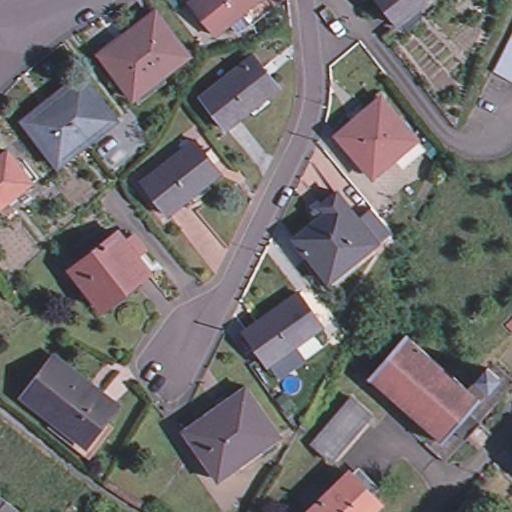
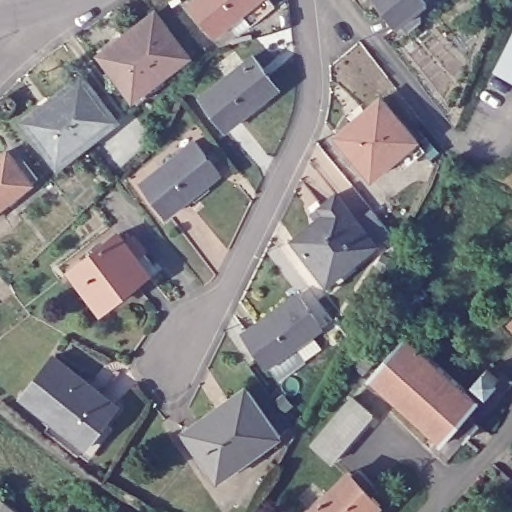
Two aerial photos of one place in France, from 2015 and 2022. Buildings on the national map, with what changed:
unchanged [(199,0),(267,0),(212,27),(199,0)]
unchanged [(432,1),(401,24),(384,0),(431,0),(432,1)]
unchanged [(102,56),(159,13),(191,57),(135,99),(102,56)]
unchanged [(512,36),(512,83),(493,73),(512,36)]
unchanged [(255,54),(279,88),(230,123),(205,89),(255,54)]
unchanged [(62,167),(30,127),(83,84),(115,123),(62,167)]
unchanged [(370,179),(335,137),(378,100),(415,142),(370,179)]
unchanged [(224,171),(173,212),(148,181),(200,140),(224,171)]
unchanged [(0,208),(0,154),(10,145),(37,178),(0,208)]
unchanged [(323,209),(339,196),(380,247),(332,286),(297,242),(329,216),(323,209)]
unchanged [(99,312),(68,274),(115,237),(120,245),(129,238),(140,253),(132,259),(145,276),(99,312)]
unchanged [(300,292),(325,325),(272,364),(248,331),(300,292)]
unchanged [(365,383),(400,340),(465,392),(483,370),(497,381),(442,448),(365,383)]
unchanged [(91,440),(28,392),(58,352),(121,400),(91,440)]
unchanged [(247,390),(281,441),(223,479),(190,428),(247,390)]
unchanged [(311,447),(350,397),(372,414),(332,464),(311,447)]
unchanged [(385,509),(383,512),(311,512),(350,473),(385,509)]
unchanged [(18,512),(0,512),(0,497),(5,501),(18,512)]

